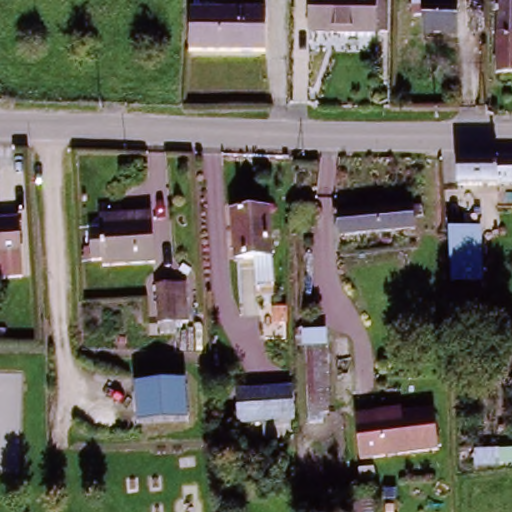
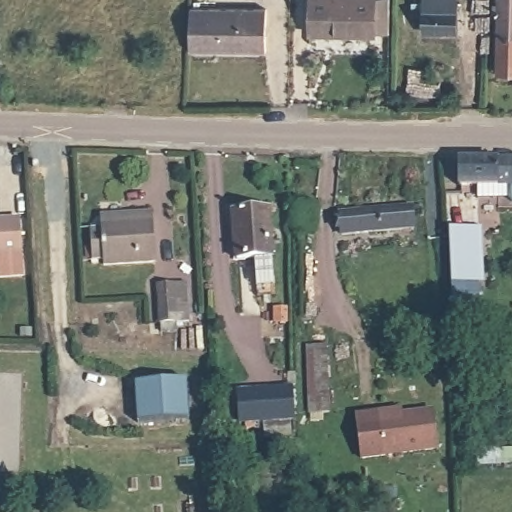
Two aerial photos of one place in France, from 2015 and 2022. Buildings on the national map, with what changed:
unchanged [(330,0),(391,0),(392,32),(330,33),(330,0)]
unchanged [(429,0),(460,0),(460,7),(462,31),(432,33),(429,0)]
unchanged [(498,0),(512,0),(512,54),(497,54),(498,0)]
unchanged [(267,50),(195,55),(192,15),(265,10),(267,50)]
unchanged [(512,161),(512,184),(462,184),(460,161),(512,161)]
unchanged [(241,258),(240,211),(273,210),(275,258),(241,258)]
unchanged [(347,214),(415,212),(415,225),(405,226),(405,235),(347,235),(347,214)]
unchanged [(15,220),(17,254),(18,279),(0,281),(0,222),(15,220)]
unchanged [(449,227),(477,226),(477,275),(452,276),(449,227)]
unchanged [(106,228),(158,227),(160,267),(107,269),(92,269),(92,239),(107,238),(106,228)]
unchanged [(180,306),(180,334),(161,333),(158,284),(189,282),(190,306),(180,306)]
unchanged [(310,413),(312,349),(298,348),(298,327),(330,329),(334,413),(310,413)]
unchanged [(130,386),(181,382),(184,420),(133,424),(130,386)]
unchanged [(240,398),(292,393),(294,420),(242,425),(240,398)]
unchanged [(400,409),(401,417),(432,413),(437,454),(358,463),(355,416),(400,409)]

